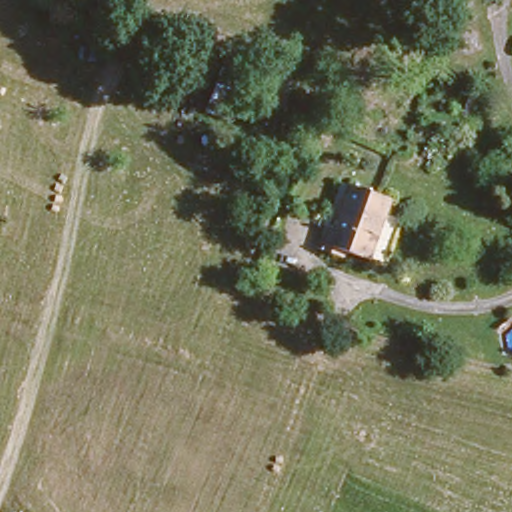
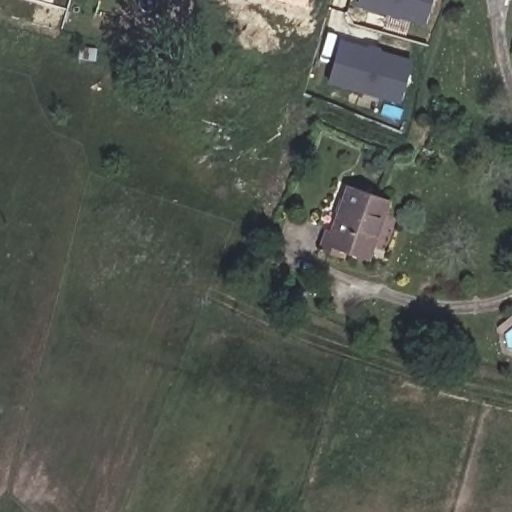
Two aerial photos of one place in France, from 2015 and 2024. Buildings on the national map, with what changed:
new [(422,24),(357,6),(359,0),(429,0),(422,24)]
new [(328,84),(340,40),(411,60),(398,103),(328,84)]
unchanged [(325,234),(350,175),(396,191),(370,252),(325,234)]

